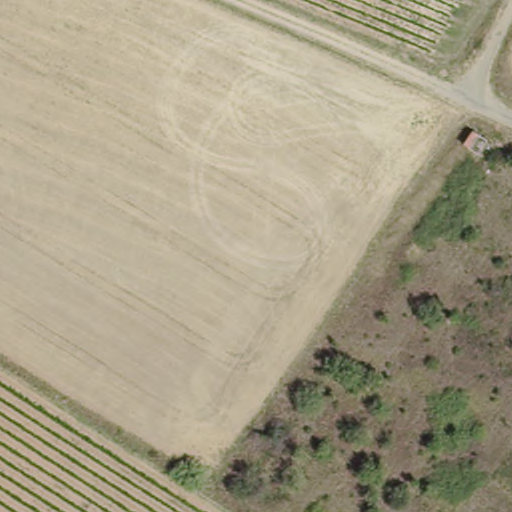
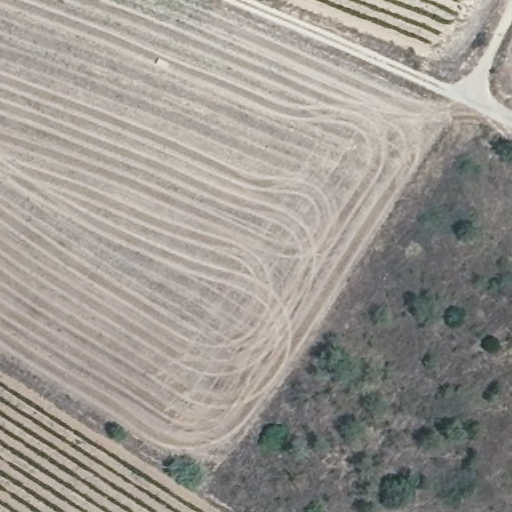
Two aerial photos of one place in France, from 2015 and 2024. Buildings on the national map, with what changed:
unchanged [(477,160),(460,149),(471,135),(487,144),(477,160)]

